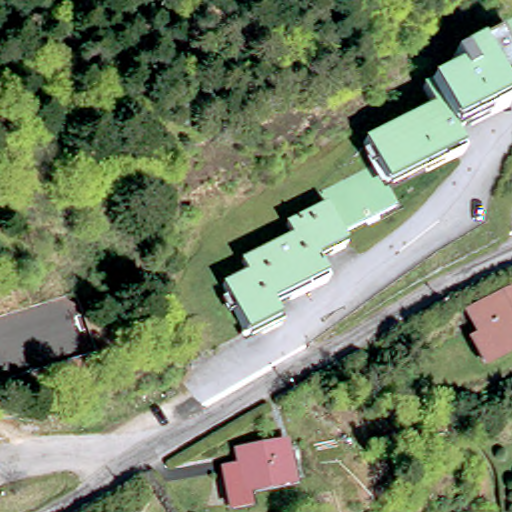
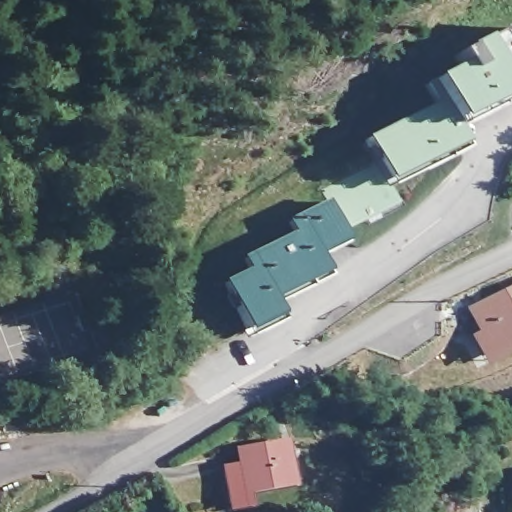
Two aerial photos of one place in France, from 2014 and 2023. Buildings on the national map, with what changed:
unchanged [(360,141),(427,106),(421,87),(457,68),(453,55),(510,26),(512,32),(512,76),(495,84),(502,99),(446,124),(456,146),(384,184),(365,191),(350,173),(368,164),(360,141)]
unchanged [(350,173),(365,191),(384,184),(392,203),(348,227),(326,184),(350,173)]
unchanged [(243,269),(241,260),(289,233),(287,224),(318,205),(316,189),(326,184),(348,227),(340,232),(341,239),(314,254),(319,270),(265,303),(271,313),(242,331),(219,284),(243,269)]
unchanged [(467,310),(512,289),(512,342),(487,354),(467,310)]
unchanged [(236,446),(275,438),(280,459),(289,458),(292,473),(246,482),(247,501),(229,503),(222,467),(240,464),(236,446)]

